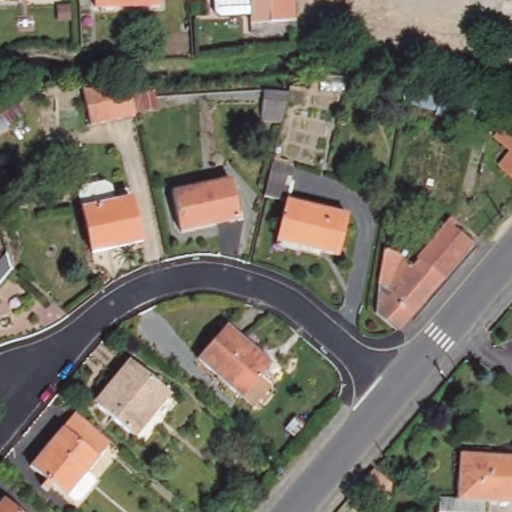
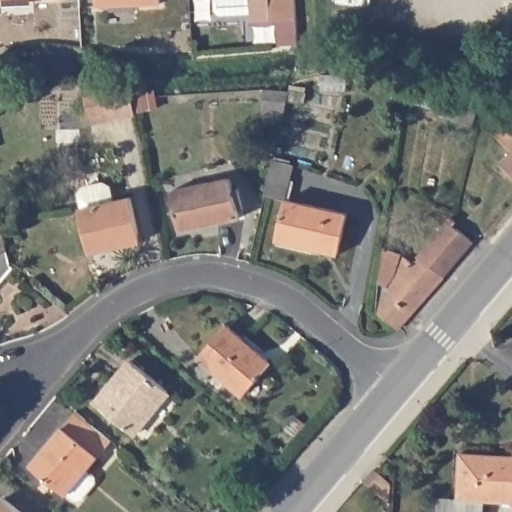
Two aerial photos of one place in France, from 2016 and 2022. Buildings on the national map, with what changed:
unchanged [(95,7),(95,0),(160,0),(160,4),(95,7)]
unchanged [(252,32),(251,22),(249,0),(295,0),(295,8),(296,20),(296,29),(271,31),(252,32)]
unchanged [(135,113),(115,115),(114,105),(114,102),(112,102),(109,103),(105,102),(102,103),(101,96),(87,96),(90,83),(103,83),(112,83),(113,90),(129,86),(131,94),(132,95),(154,91),(157,108),(135,113)]
unchanged [(261,121),(263,90),(290,91),(306,93),(303,103),(287,100),(282,122),(261,121)]
unchanged [(478,107),(471,126),(437,114),(438,111),(411,103),(414,90),(441,97),(478,107)]
unchanged [(26,114),(10,125),(20,143),(12,149),(0,153),(0,114),(4,111),(17,102),(26,114)]
unchanged [(512,177),(500,166),(511,151),(502,143),(496,137),(503,128),(509,133),(512,136),(512,177)]
unchanged [(337,255),(277,241),(286,200),(265,195),(272,161),(295,167),(287,199),(347,214),(337,255)]
unchanged [(239,218),(180,232),(172,191),(230,178),(239,218)]
unchanged [(91,257),(90,250),(82,212),(79,198),(83,192),(104,187),(110,191),(113,206),(131,202),(139,240),(141,247),(91,257)]
unchanged [(442,228),(451,218),(453,220),(456,222),(453,226),(474,242),(442,279),(418,258),(442,228)]
unchanged [(442,279),(411,315),(397,330),(376,312),(377,283),(384,247),(402,255),(402,256),(413,265),(418,258),(442,279)]
unchanged [(7,253),(10,266),(12,268),(0,282),(0,261),(7,253)]
unchanged [(271,363),(242,397),(197,358),(227,324),(271,363)]
unchanged [(167,391),(133,434),(97,404),(132,362),(167,391)]
unchanged [(307,424),(287,448),(282,443),(290,433),(285,429),(296,416),(307,424)]
unchanged [(70,422),(77,428),(106,452),(93,467),(61,506),(25,476),(57,437),(70,422)]
unchanged [(484,512),(438,512),(439,498),(457,499),(460,453),(512,456),(512,503),(485,501),(484,512)]
unchanged [(391,482),(390,489),(389,503),(363,481),(373,468),(391,482)]
unchanged [(20,512),(0,512),(0,502),(3,498),(20,512)]

